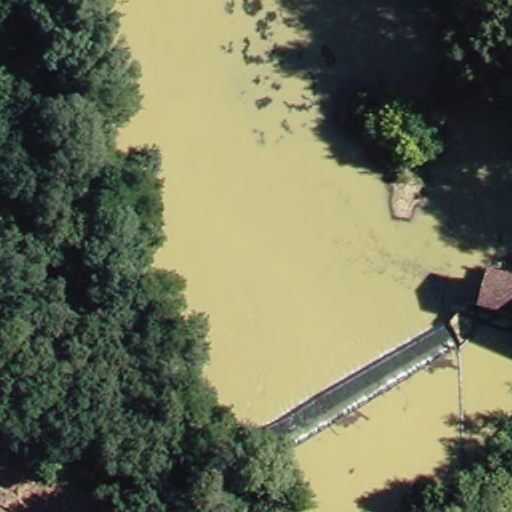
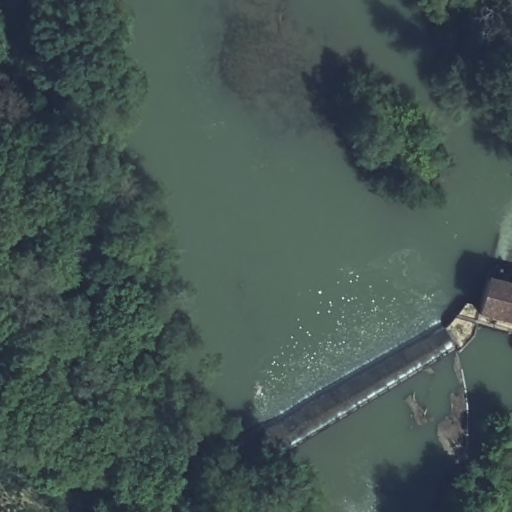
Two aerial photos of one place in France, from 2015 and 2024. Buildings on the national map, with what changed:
unchanged [(506,280),(512,282),(512,324),(494,318),(506,280)]

